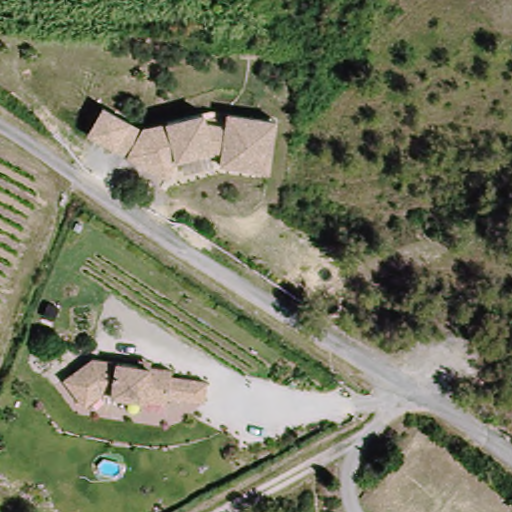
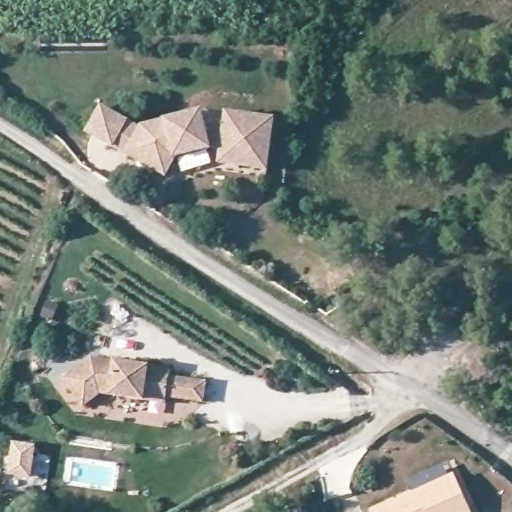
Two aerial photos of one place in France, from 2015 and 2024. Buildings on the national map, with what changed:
unchanged [(223,167),(224,153),(211,152),(180,164),(168,178),(89,134),(101,109),(141,127),(210,110),(213,127),(225,128),(227,113),(276,121),(273,171),(223,167)]
unchanged [(208,404),(170,401),(169,406),(106,397),(88,411),(65,378),(95,357),(173,362),(171,376),(211,380),(208,404)]
new [(16,440),(39,443),(34,473),(12,470),(16,440)]
new [(474,512),(378,512),(456,475),(474,512)]

